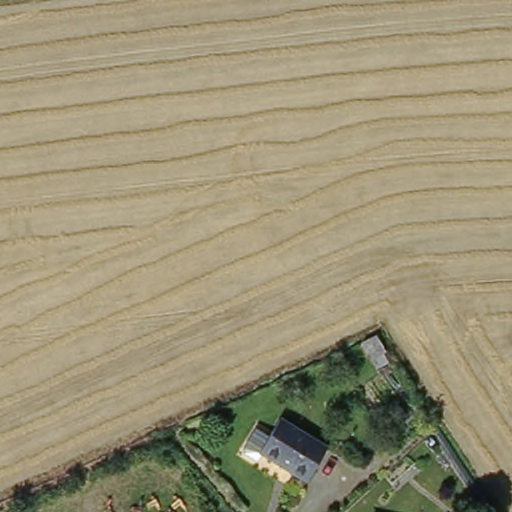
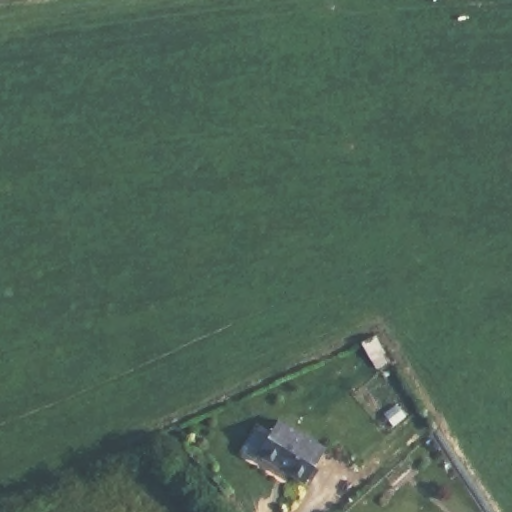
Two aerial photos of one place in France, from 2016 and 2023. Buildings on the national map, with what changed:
unchanged [(260,430),(274,439),(284,424),(331,452),(308,485),(263,457),(258,466),(242,457),(260,430)]

